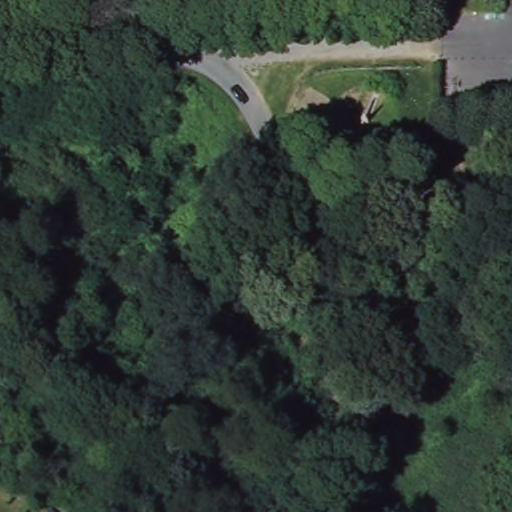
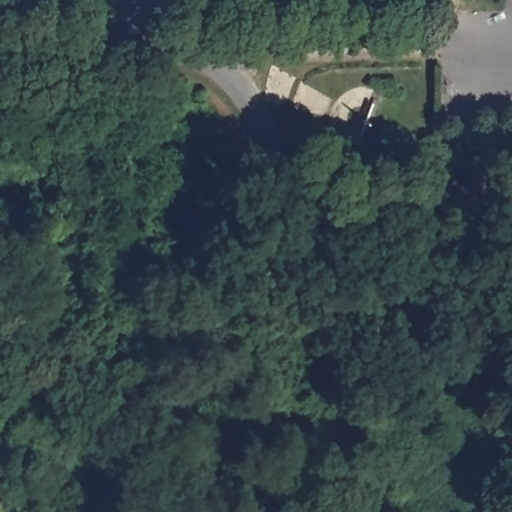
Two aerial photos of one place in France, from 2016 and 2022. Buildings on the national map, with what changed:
[]

